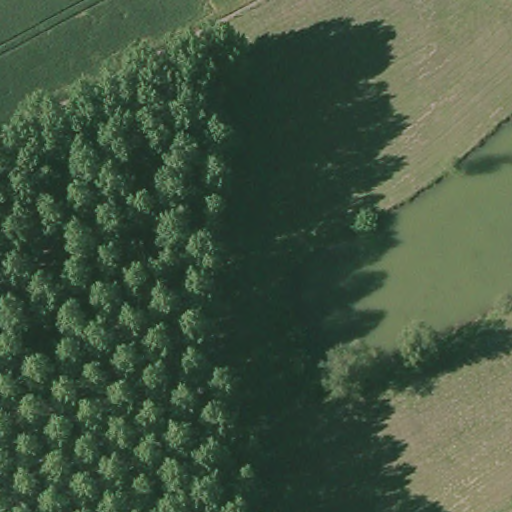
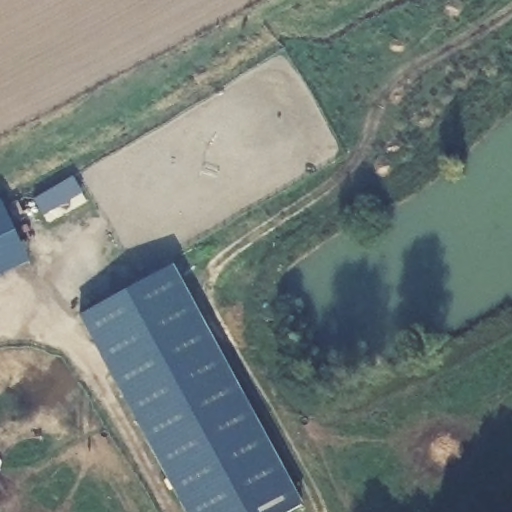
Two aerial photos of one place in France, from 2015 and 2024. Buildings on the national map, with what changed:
new [(73,177),(83,194),(43,218),(33,201),(73,177)]
new [(1,204),(29,264),(0,277),(0,204),(1,204)]
new [(288,512),(184,512),(78,318),(173,266),(303,504),(288,512)]

